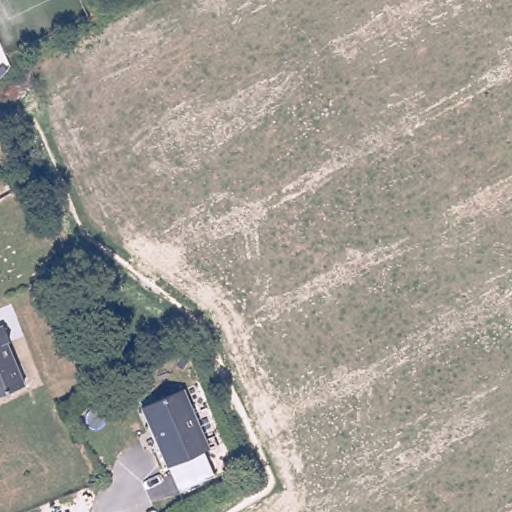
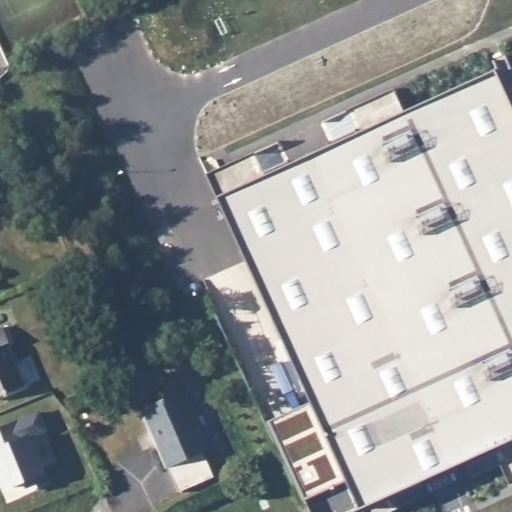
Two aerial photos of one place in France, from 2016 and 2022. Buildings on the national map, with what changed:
new [(496,68),(494,61),(508,56),(512,64),(512,438),(359,509),(353,512),(309,512),(267,422),(310,405),(216,196),(496,68)]
new [(393,88),(403,111),(356,132),(346,110),(393,88)]
unchanged [(11,347),(5,350),(13,372),(21,394),(0,403),(0,330),(5,328),(11,347)]
unchanged [(185,390),(210,451),(173,469),(148,409),(185,390)]
new [(47,431),(30,437),(43,472),(49,483),(30,491),(26,480),(5,490),(0,477),(0,426),(39,410),(47,431)]
new [(512,440),(512,484),(509,486),(492,449),(512,440)]

